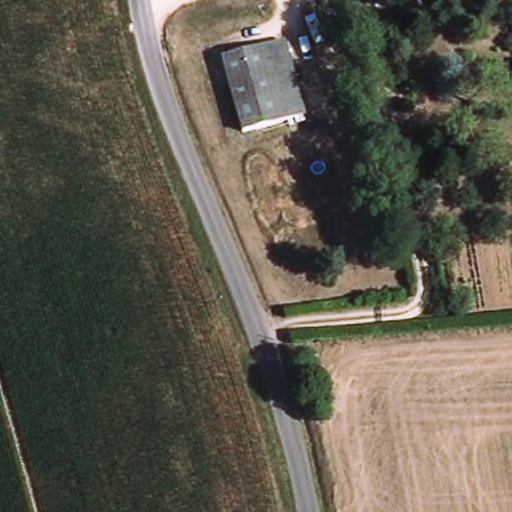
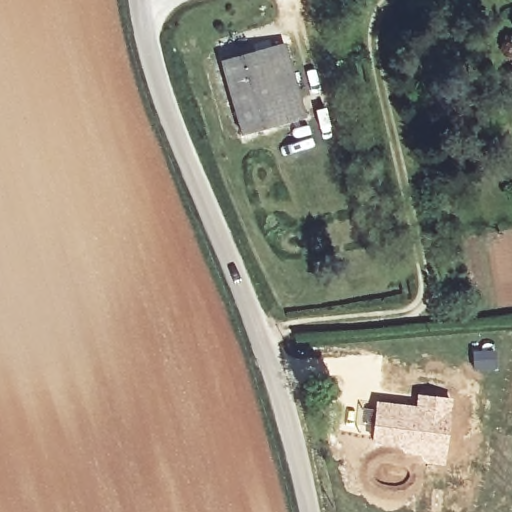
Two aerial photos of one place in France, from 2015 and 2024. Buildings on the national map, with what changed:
unchanged [(218,62),(280,44),(300,118),(238,136),(218,62)]
new [(495,347),(497,369),(472,369),(472,348),(495,347)]
new [(374,399),(414,403),(415,392),(452,396),(443,463),(421,460),(405,452),(370,441),(374,399)]

